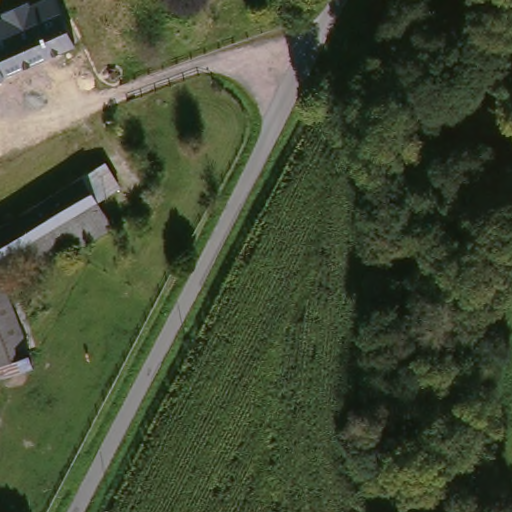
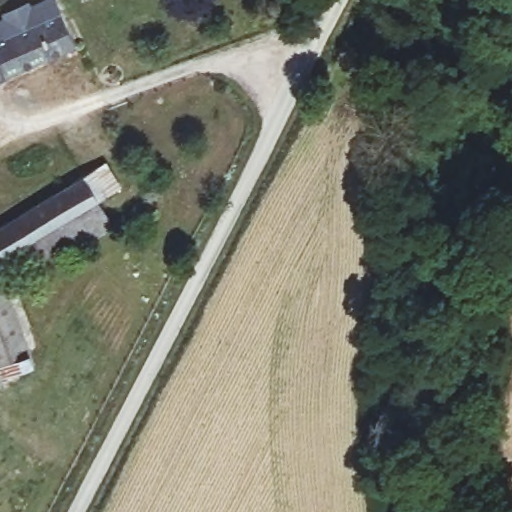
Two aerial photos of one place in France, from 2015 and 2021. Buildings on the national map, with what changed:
unchanged [(0,18),(45,0),(67,0),(84,40),(0,74),(0,18)]
unchanged [(33,251),(0,270),(0,228),(85,176),(117,229),(48,274),(33,251)]
unchanged [(10,289),(15,295),(48,354),(13,374),(0,352),(0,288),(3,293),(10,289)]

